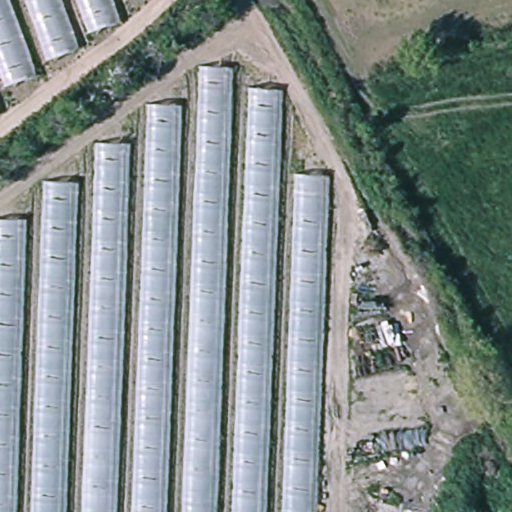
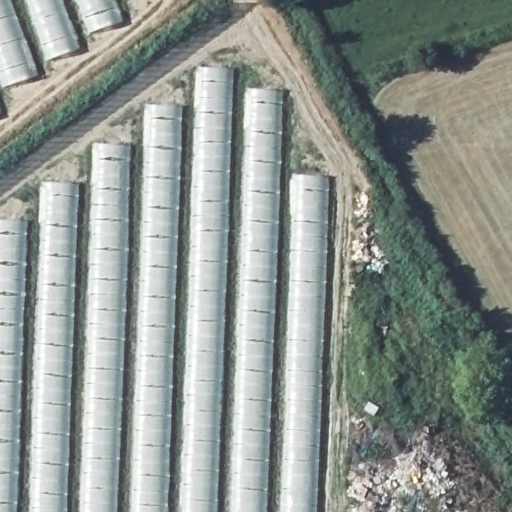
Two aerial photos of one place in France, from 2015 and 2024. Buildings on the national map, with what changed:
unchanged [(121,23),(76,38),(77,51),(35,68),(37,81),(0,93),(0,0),(122,0),(115,3),(121,23)]
unchanged [(44,220),(45,180),(98,182),(100,139),(150,140),(152,100),(200,100),(200,63),(235,64),(235,87),(282,89),(281,175),(328,175),(317,512),(0,512),(0,218),(44,220)]
unchanged [(4,114),(0,115),(0,104),(4,114)]

